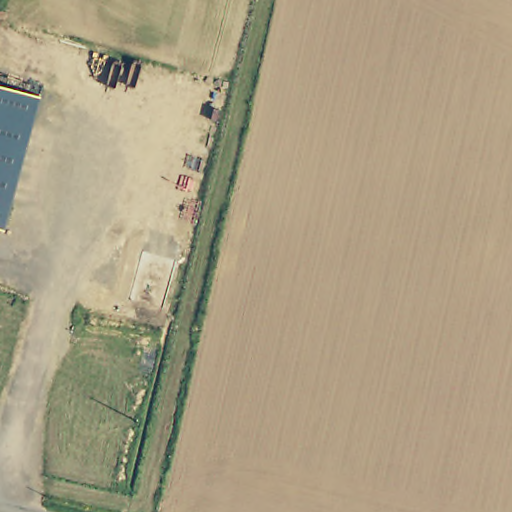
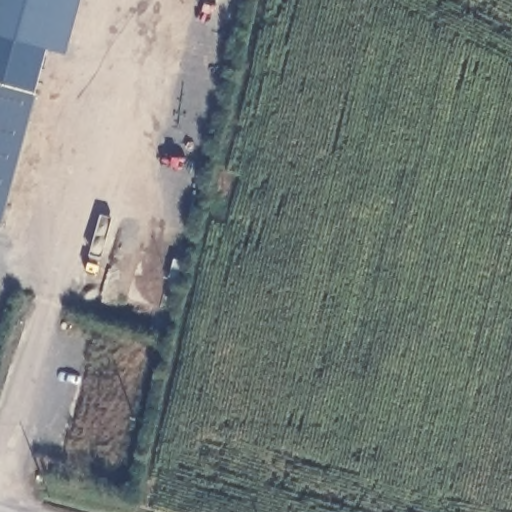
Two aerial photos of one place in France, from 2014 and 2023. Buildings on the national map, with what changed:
new [(50,49),(37,93),(0,83),(0,0),(85,0),(70,56),(50,49)]
unchanged [(4,228),(0,228),(0,83),(42,95),(4,228)]

